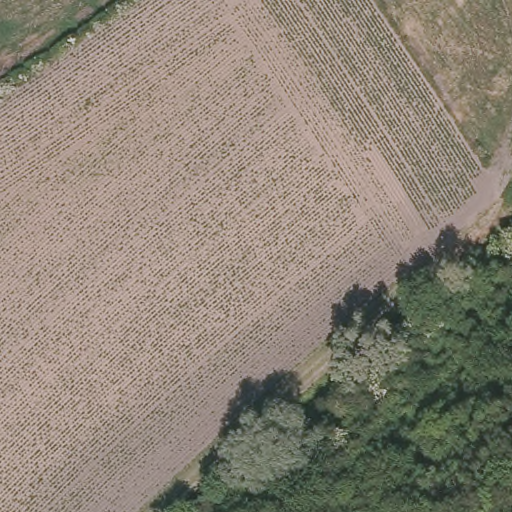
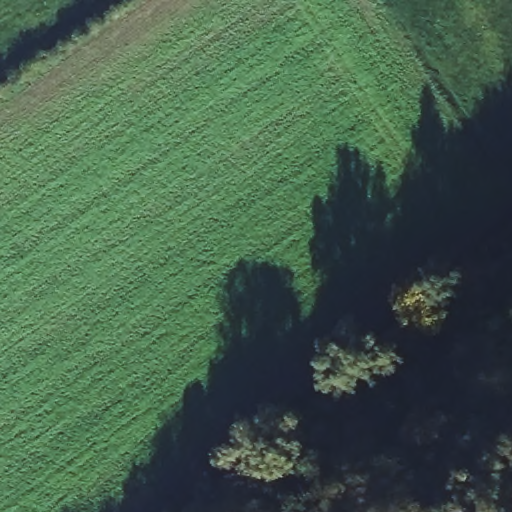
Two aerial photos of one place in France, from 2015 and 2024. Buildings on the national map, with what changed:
[]

